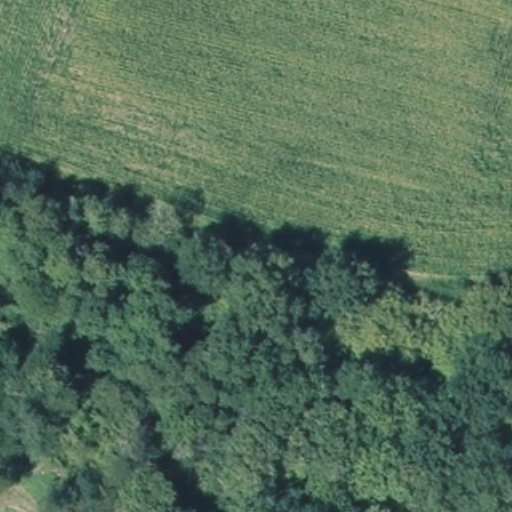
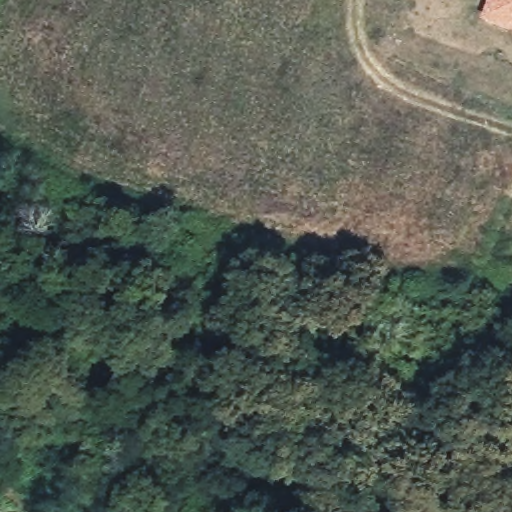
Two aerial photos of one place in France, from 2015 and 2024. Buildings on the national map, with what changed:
new [(512,0),(512,30),(480,18),(486,0),(512,0)]

